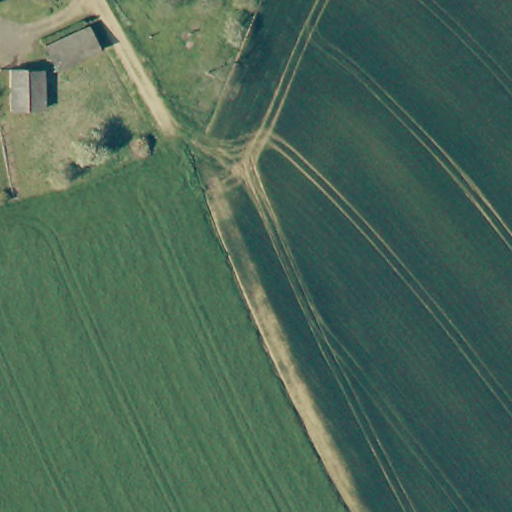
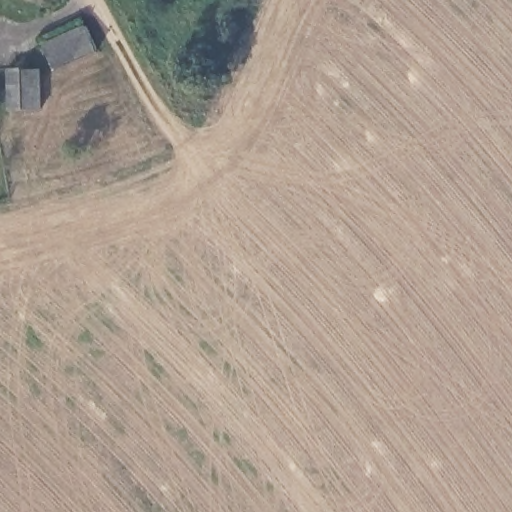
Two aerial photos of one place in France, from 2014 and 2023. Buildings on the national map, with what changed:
unchanged [(0,11),(0,0),(13,0),(11,12),(0,11)]
unchanged [(56,73),(45,48),(86,29),(91,27),(103,52),(101,53),(56,73)]
unchanged [(29,109),(14,108),(14,74),(31,75),(41,75),(40,109),(29,109)]

